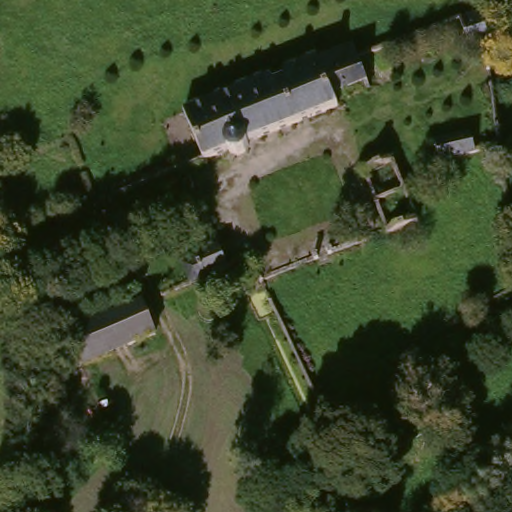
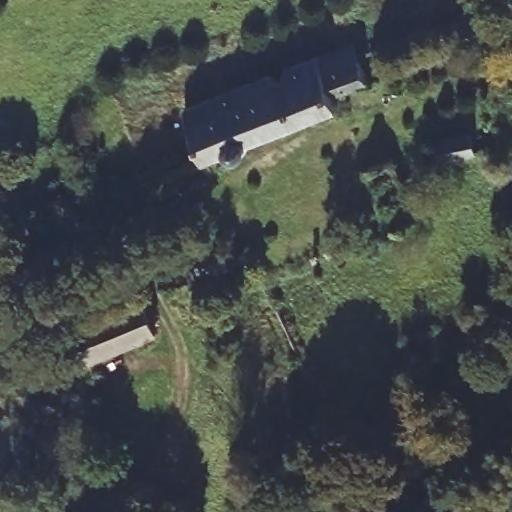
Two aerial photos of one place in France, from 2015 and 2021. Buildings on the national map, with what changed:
unchanged [(491,44),(470,51),(460,18),(482,11),(491,44)]
unchanged [(252,138),(252,146),(250,153),(244,157),(236,156),(231,152),(229,148),(202,157),(185,111),(353,47),(356,58),(365,82),(334,94),(338,106),(252,138)]
unchanged [(478,154),(440,165),(434,138),(472,129),(478,154)]
unchanged [(230,273),(203,285),(195,255),(216,244),(230,273)]
unchanged [(146,300),(157,335),(132,344),(84,361),(72,327),(146,300)]

